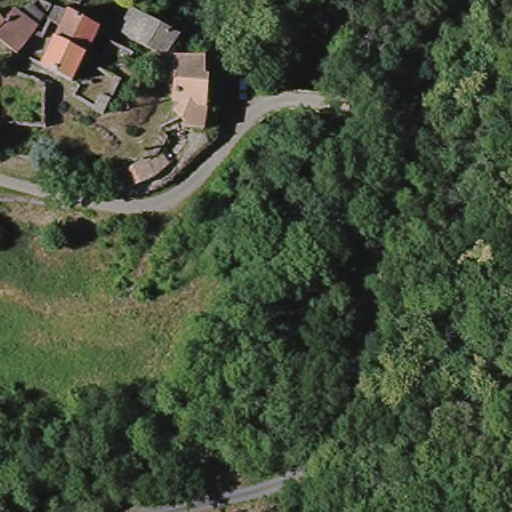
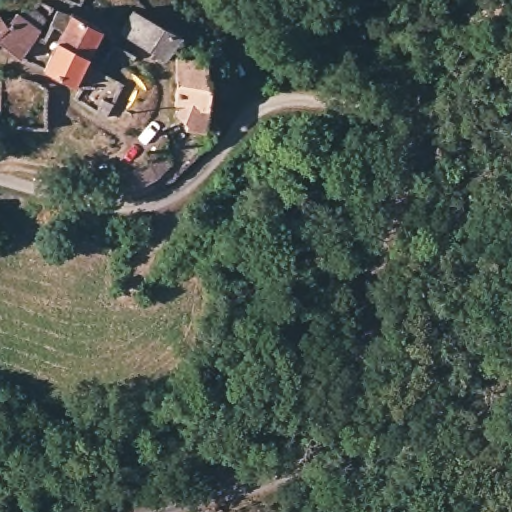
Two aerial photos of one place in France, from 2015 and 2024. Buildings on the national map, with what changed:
unchanged [(20,64),(16,61),(14,58),(0,44),(0,35),(12,24),(28,11),(37,4),(54,18),(47,28),(37,45),(29,52),(32,57),(20,64)]
unchanged [(3,14),(9,19),(12,24),(0,35),(0,11),(3,14)]
unchanged [(67,31),(55,26),(65,11),(75,16),(77,13),(100,27),(101,29),(90,55),(77,86),(49,73),(45,71),(59,45),(61,41),(67,31)]
unchanged [(186,41),(182,48),(171,66),(167,64),(152,52),(130,36),(145,14),(172,32),(186,41)]
unchanged [(206,98),(204,121),(202,134),(183,134),(184,124),(176,122),(182,113),(172,105),(177,84),(180,64),(191,68),(199,71),(202,72),(201,96),(206,98)]
unchanged [(124,194),(112,177),(165,151),(175,172),(124,194)]

